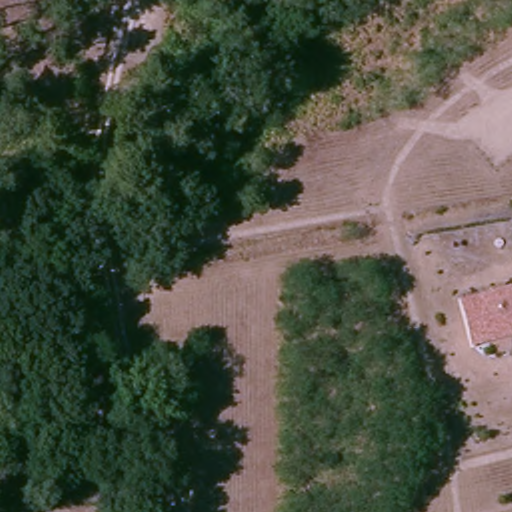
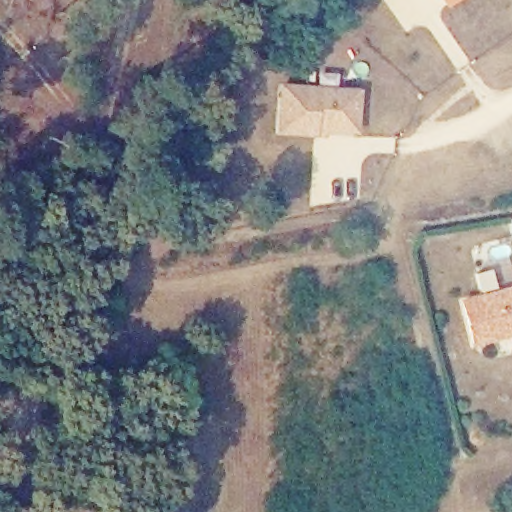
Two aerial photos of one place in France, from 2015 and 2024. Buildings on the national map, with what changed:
new [(457,0),(447,7),(441,0),(457,0)]
new [(278,84),(361,89),(357,135),(325,132),(325,137),(275,134),(278,84)]
unchanged [(512,285),(512,336),(470,345),(459,297),(512,285)]

